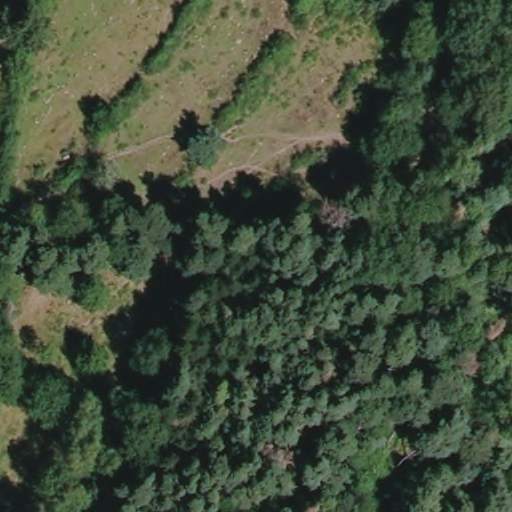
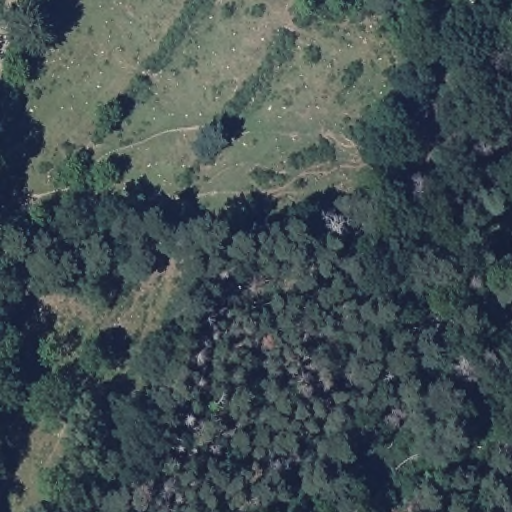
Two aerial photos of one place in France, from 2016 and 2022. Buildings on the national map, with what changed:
[]

